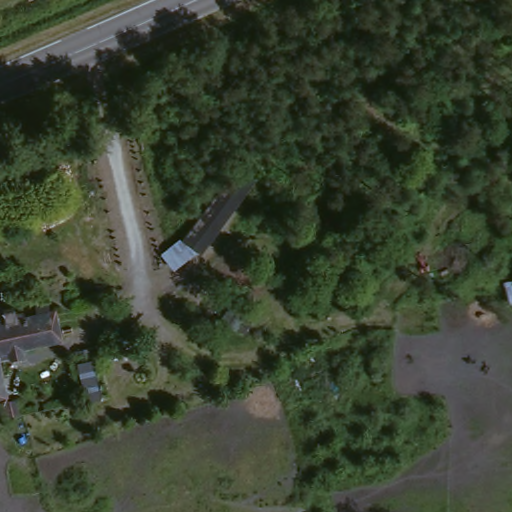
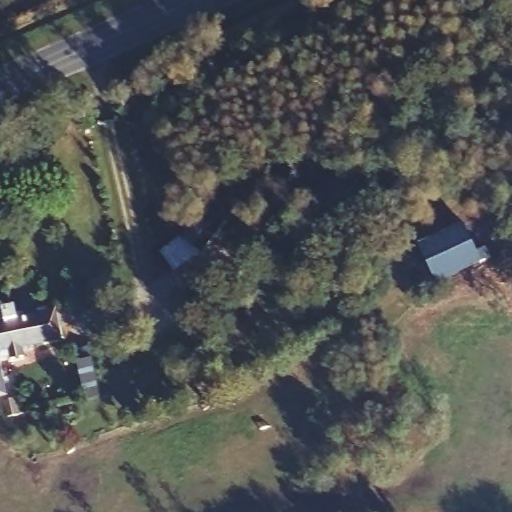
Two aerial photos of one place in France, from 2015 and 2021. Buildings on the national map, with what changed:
unchanged [(259,172),(273,183),(214,253),(201,242),(259,172)]
unchanged [(233,173),(247,184),(189,254),(176,244),(233,173)]
new [(466,224),(482,264),(439,284),(419,244),(466,224)]
unchanged [(60,344),(4,356),(6,365),(0,366),(0,312),(8,310),(9,314),(22,313),(24,322),(49,317),(51,317),(53,320),(60,344)]
unchanged [(4,399),(2,400),(0,400),(0,382),(4,399)]
unchanged [(5,424),(1,407),(13,404),(18,422),(5,424)]

